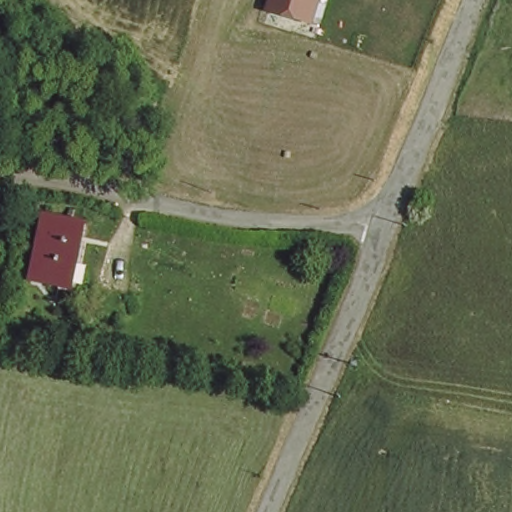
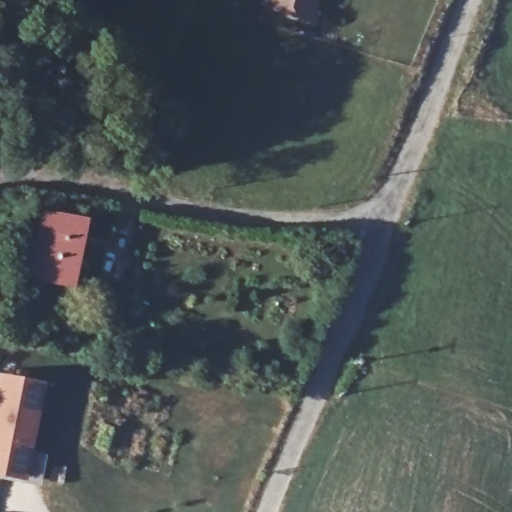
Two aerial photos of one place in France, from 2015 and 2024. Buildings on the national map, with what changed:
unchanged [(308,15),(267,2),(268,0),(313,0),(308,15)]
unchanged [(82,236),(65,292),(37,285),(41,268),(30,266),(43,224),(82,236)]
new [(25,482),(0,477),(0,374),(45,383),(25,482)]

